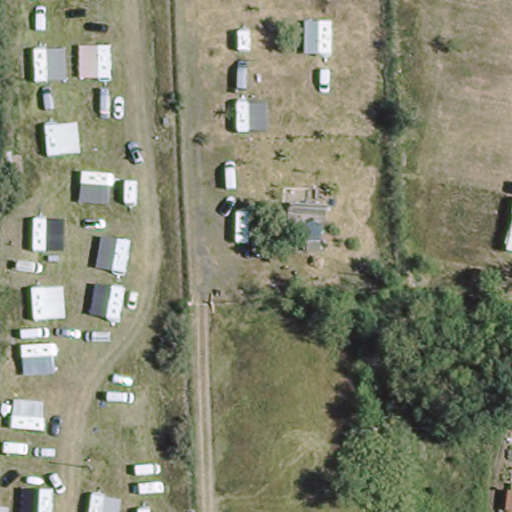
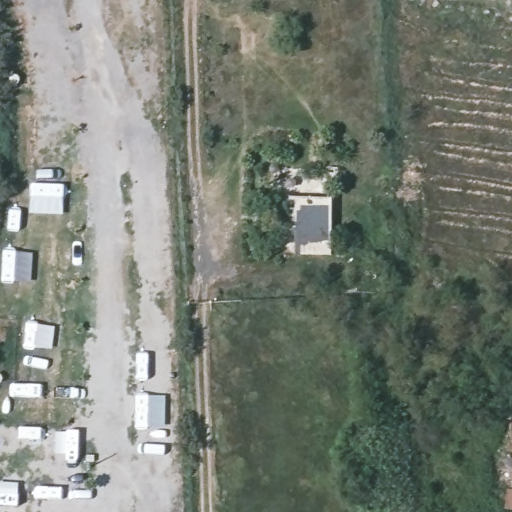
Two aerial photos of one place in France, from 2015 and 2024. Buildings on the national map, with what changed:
new [(334,198),(333,259),(294,258),(295,230),(286,230),(287,197),(334,198)]

